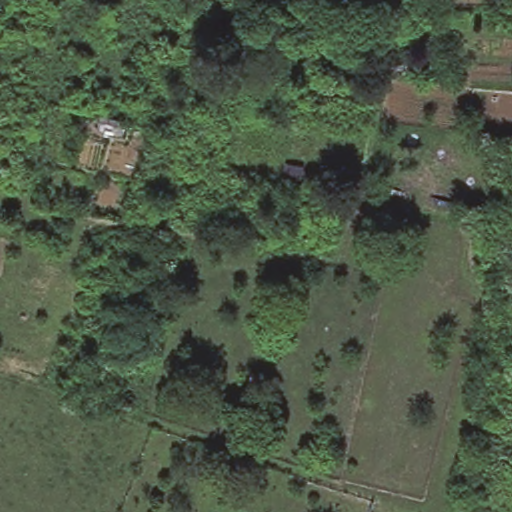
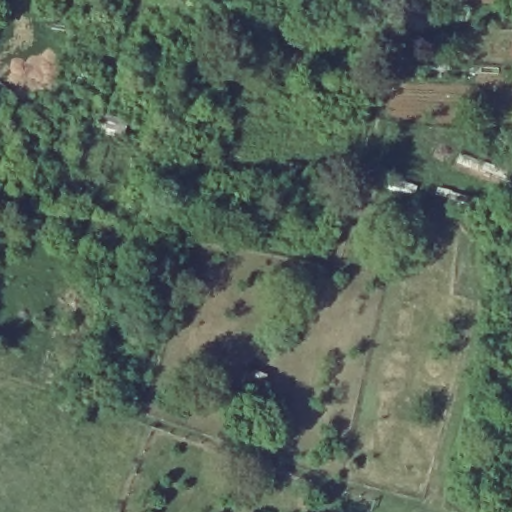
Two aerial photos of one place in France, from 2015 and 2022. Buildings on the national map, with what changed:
unchanged [(127,118),(124,135),(95,128),(101,112),(127,118)]
unchanged [(365,136),(361,154),(340,151),(342,134),(365,136)]

